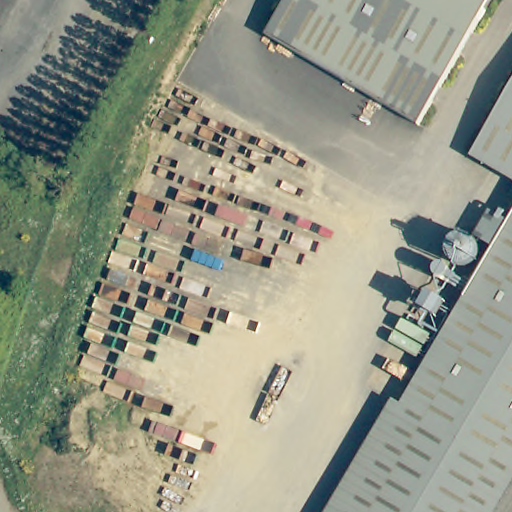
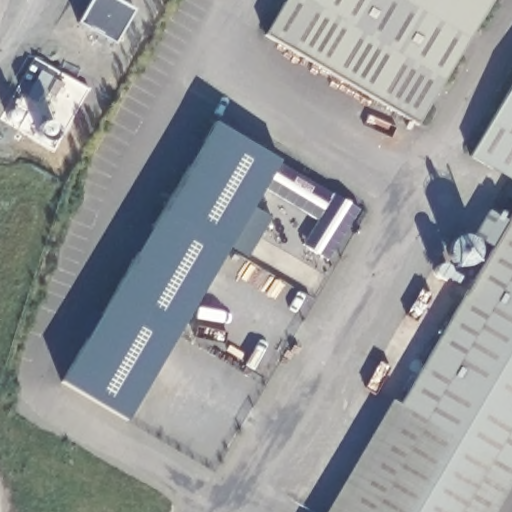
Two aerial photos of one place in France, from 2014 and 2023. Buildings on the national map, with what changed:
unchanged [(276,35),(297,0),(502,0),(428,124),(276,35)]
unchanged [(512,182),(476,160),(512,99),(512,182)]
new [(281,158),(256,204),(272,218),(249,255),(233,243),(128,419),(62,380),(215,121),(281,158)]
unchanged [(499,251),(481,240),(496,215),(512,225),(512,472),(407,410),(499,251)]
unchanged [(462,241),(469,240),(477,242),(482,248),(485,256),(482,263),(477,269),(468,271),(461,269),(455,263),(453,255),(456,247),(462,241)]
unchanged [(447,268),(451,269),(453,271),(455,275),(455,279),(452,282),(448,284),(445,283),(442,281),(440,277),(441,273),(443,270),(447,268)]
unchanged [(347,512),(407,410),(512,472),(512,500),(505,512),(347,512)]

